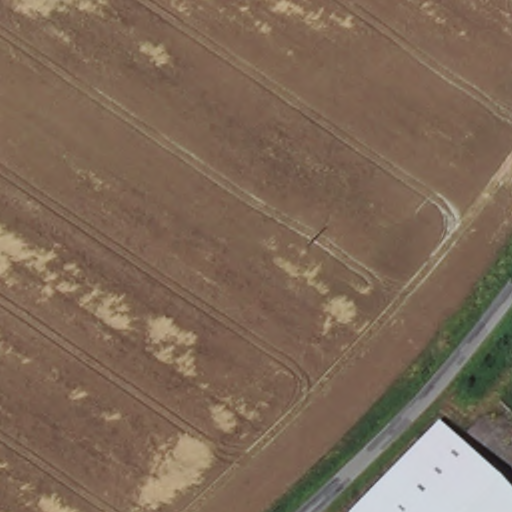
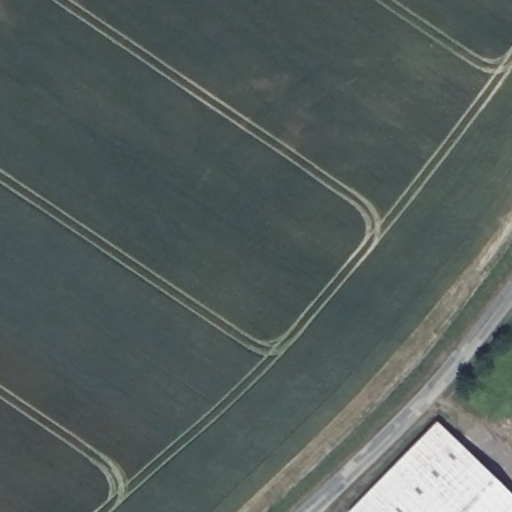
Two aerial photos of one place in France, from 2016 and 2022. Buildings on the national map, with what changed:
unchanged [(357,512),(437,425),(512,494),(512,512),(357,512)]

